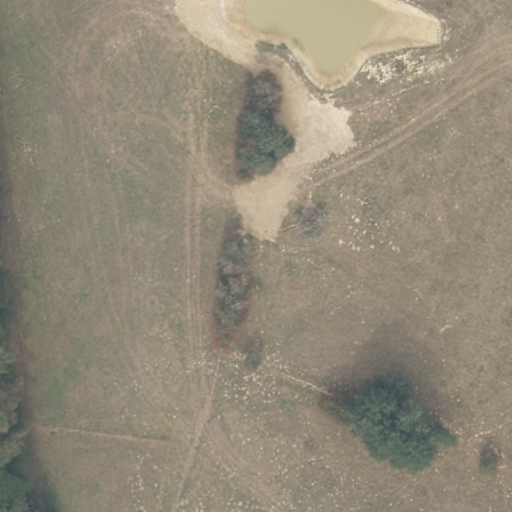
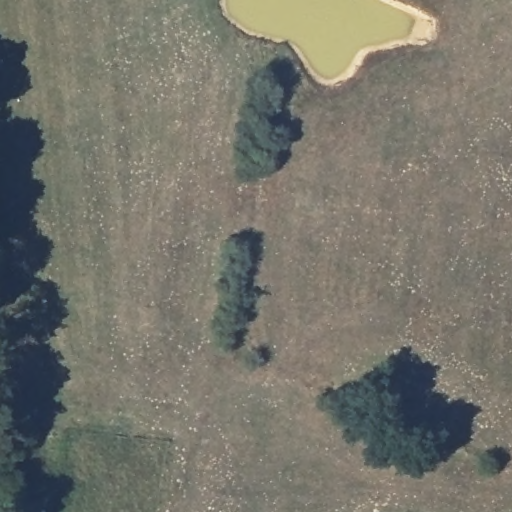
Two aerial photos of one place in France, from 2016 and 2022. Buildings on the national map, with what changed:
[]

